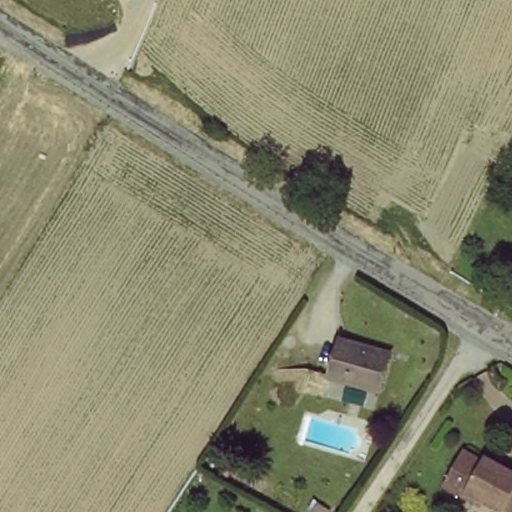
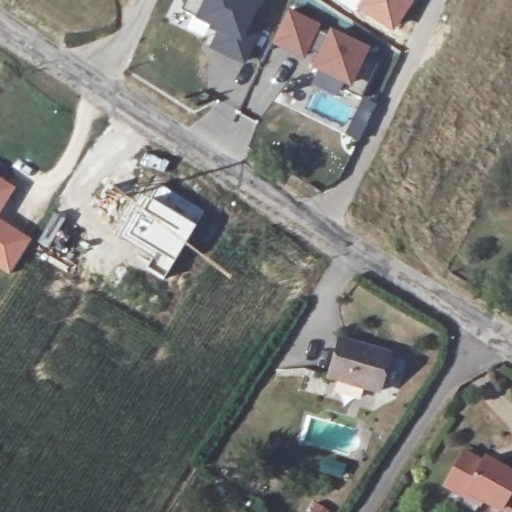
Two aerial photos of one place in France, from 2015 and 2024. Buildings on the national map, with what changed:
new [(209,48),(218,31),(209,27),(203,40),(185,29),(192,15),(182,10),(187,0),(254,0),(260,3),(250,24),(262,30),(245,65),(209,48)]
new [(270,44),(287,9),(320,24),(316,31),(326,36),(330,28),(371,47),(365,58),(376,64),(359,97),(346,90),(347,85),(309,69),(316,54),(308,50),(303,60),(270,44)]
new [(361,97),(377,105),(358,142),(343,135),(361,97)]
new [(15,187),(0,211),(0,178),(15,187)]
new [(162,185),(204,211),(195,226),(162,280),(129,261),(135,252),(112,237),(139,192),(147,197),(162,185)]
new [(33,240),(13,271),(0,263),(0,219),(7,224),(33,240)]
unchanged [(386,355),(378,391),(331,380),(340,342),(386,355)]
unchanged [(474,496),(463,490),(460,495),(442,485),(460,450),(480,461),(484,455),(497,462),(512,471),(512,512),(511,512),(498,505),(496,507),(494,512),(493,512),(472,501),(474,496)]

